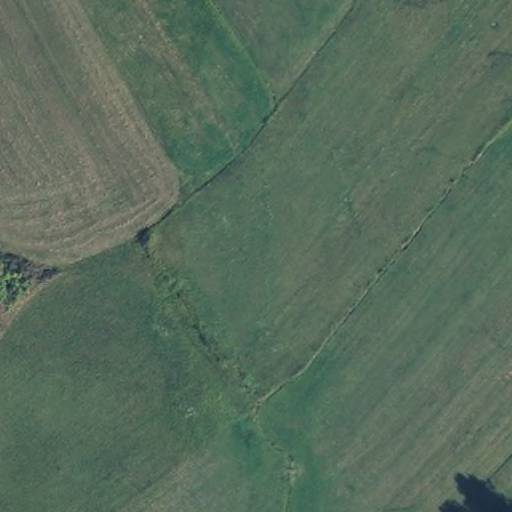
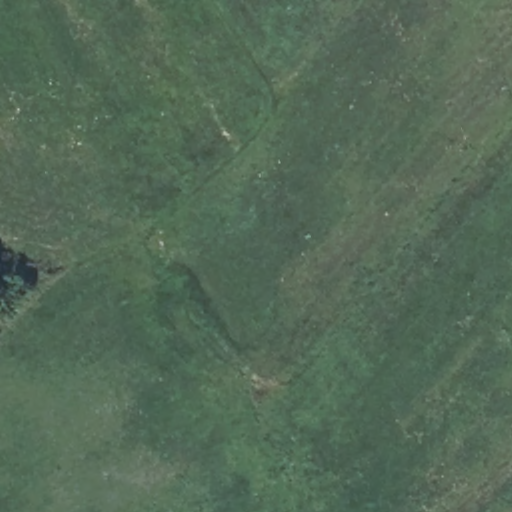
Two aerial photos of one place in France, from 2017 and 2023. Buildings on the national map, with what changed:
[]

